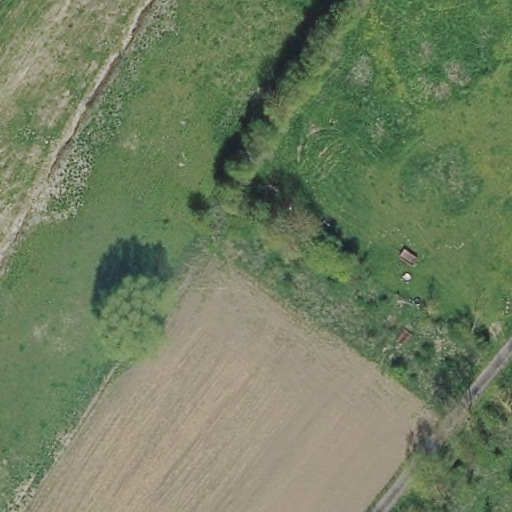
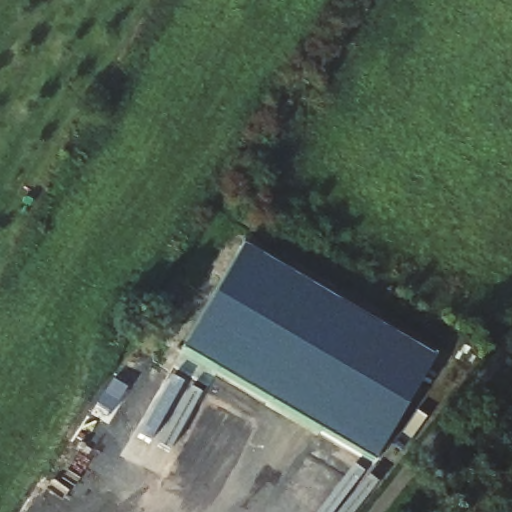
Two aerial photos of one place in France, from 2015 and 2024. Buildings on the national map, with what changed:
new [(432,361),(372,464),(182,353),(243,250),(432,361)]

